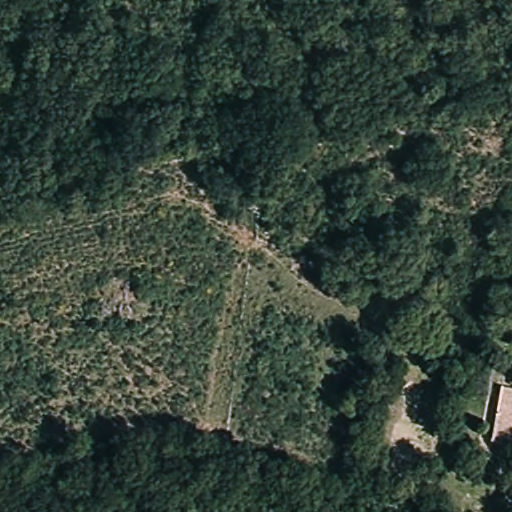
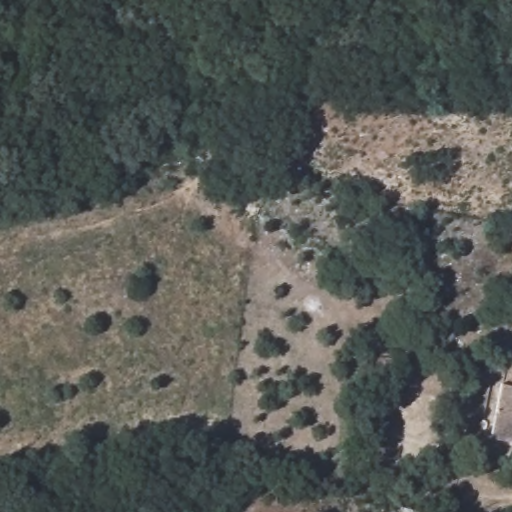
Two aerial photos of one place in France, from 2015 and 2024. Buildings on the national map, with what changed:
unchanged [(512,383),(512,440),(490,437),(497,382),(512,383)]

